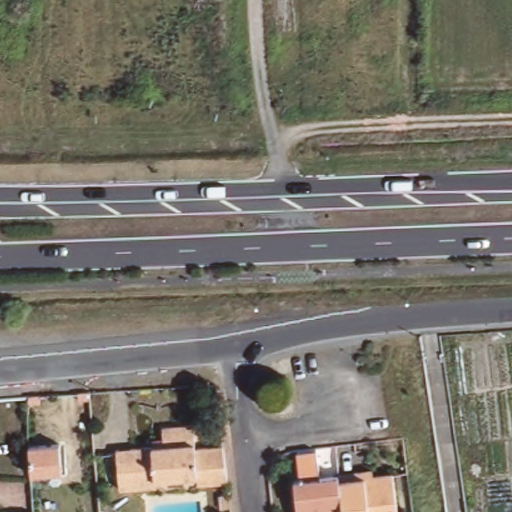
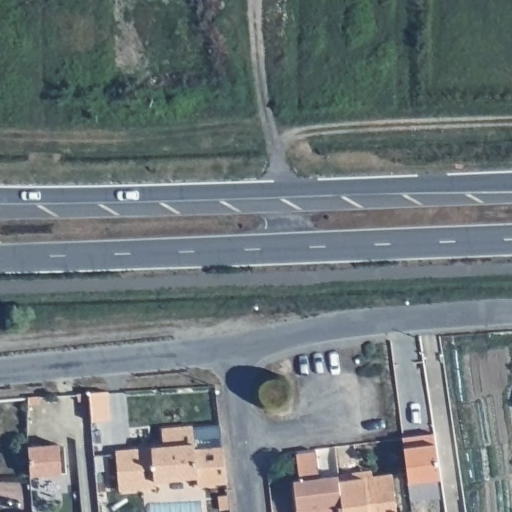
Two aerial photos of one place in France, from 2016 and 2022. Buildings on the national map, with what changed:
unchanged [(201,488),(199,481),(160,485),(160,492),(123,496),(118,457),(155,453),(154,445),(166,443),(165,433),(194,430),(198,452),(222,450),(226,485),(201,488)]
unchanged [(62,472),(28,475),(26,443),(60,441),(62,472)]
unchanged [(303,485),(300,460),(320,458),(323,482),(342,480),(346,512),(298,512),(296,485),(303,485)]
unchanged [(360,478),(375,476),(375,482),(396,481),(400,512),(346,512),(342,480),(360,478)]
unchanged [(39,512),(26,512),(38,511),(39,512)]

